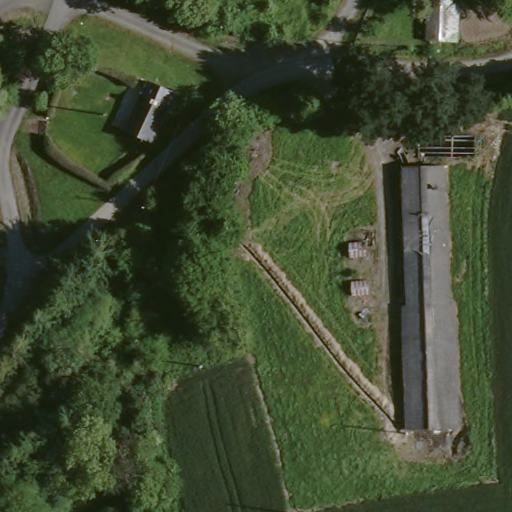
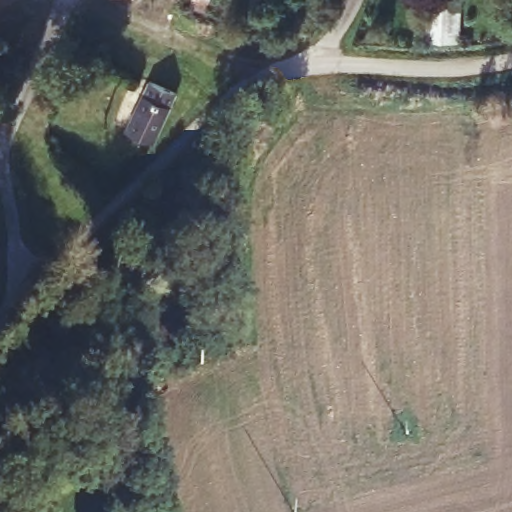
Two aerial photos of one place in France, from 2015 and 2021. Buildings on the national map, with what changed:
unchanged [(428,0),(459,0),(459,42),(427,41),(428,0)]
unchanged [(124,137),(141,95),(142,95),(146,85),(158,90),(176,95),(152,147),(124,137)]
demolished [(453,305),(457,422),(406,424),(403,304),(409,303),(406,166),(444,166),(449,303),(453,305)]

